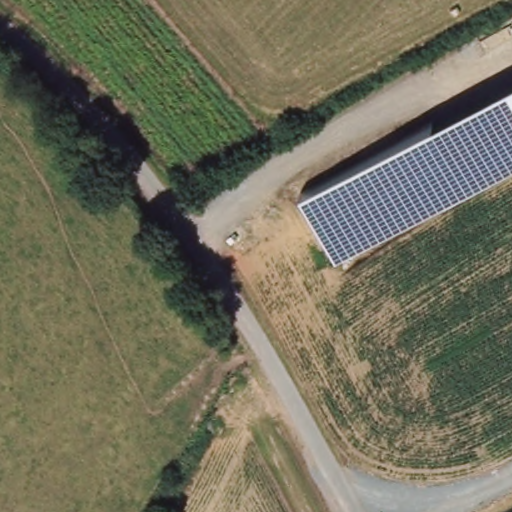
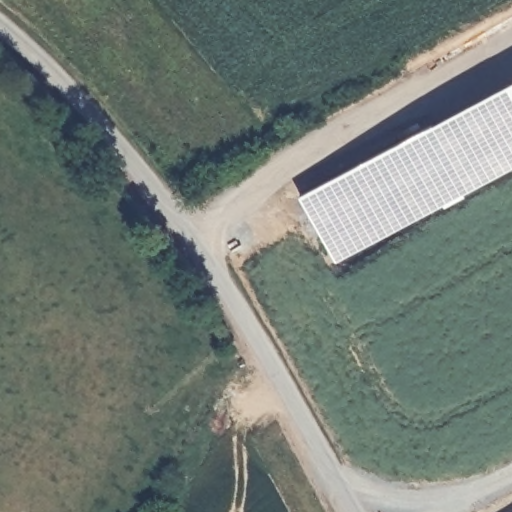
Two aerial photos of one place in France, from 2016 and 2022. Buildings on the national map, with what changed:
unchanged [(512,83),(512,167),(334,263),(300,197),(512,83)]

